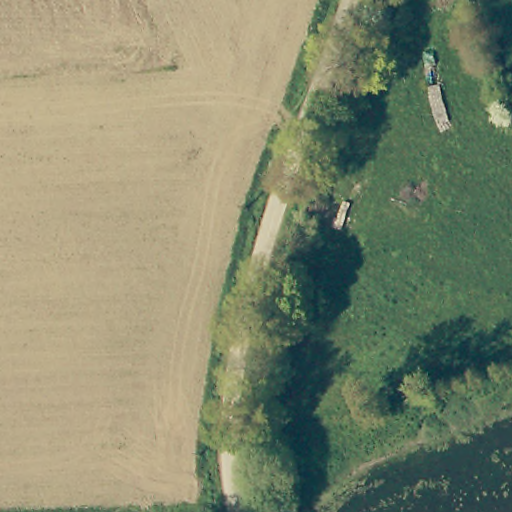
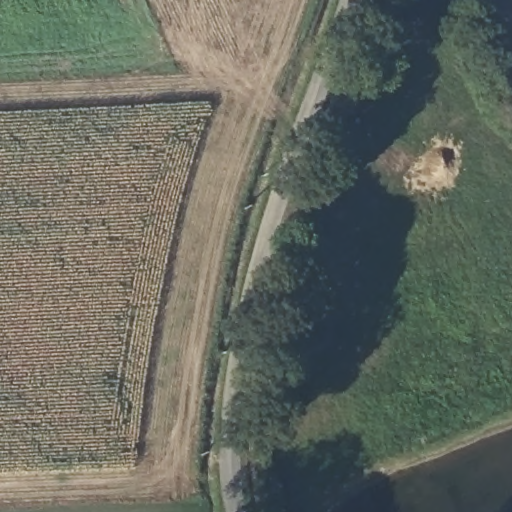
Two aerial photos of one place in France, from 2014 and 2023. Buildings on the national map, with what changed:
[]

